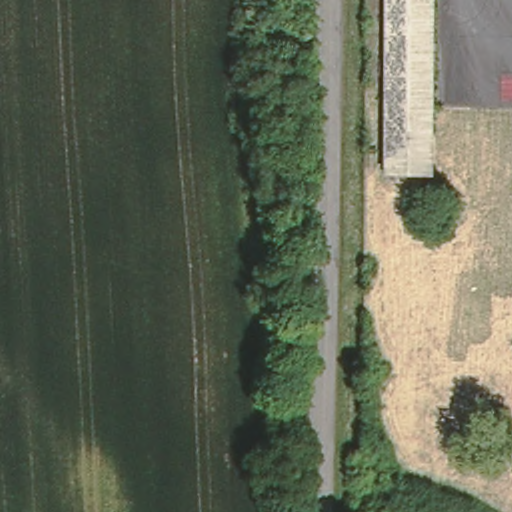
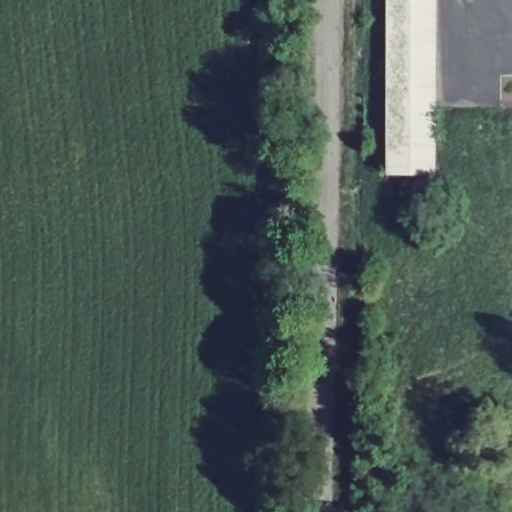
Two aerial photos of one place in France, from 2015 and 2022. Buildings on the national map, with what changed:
unchanged [(431,174),(386,173),(386,0),(432,0),(431,174)]

